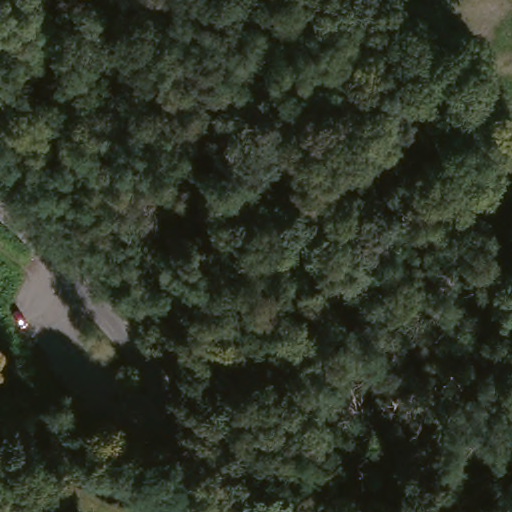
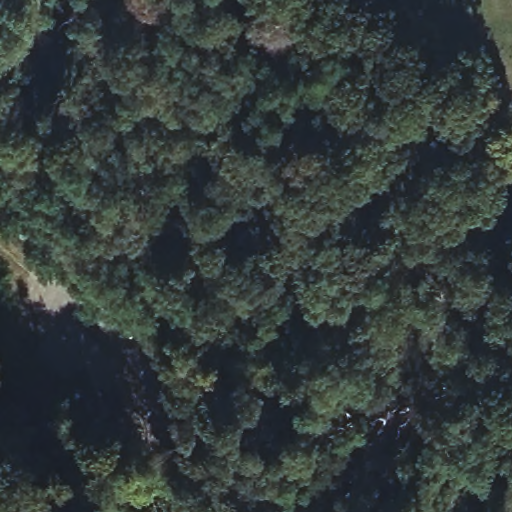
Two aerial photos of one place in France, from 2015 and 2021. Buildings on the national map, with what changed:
[]

